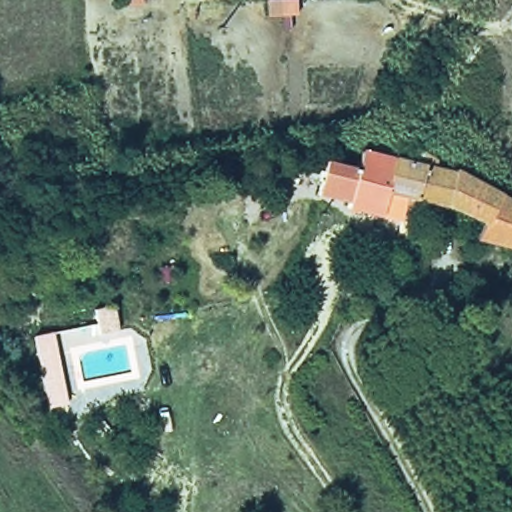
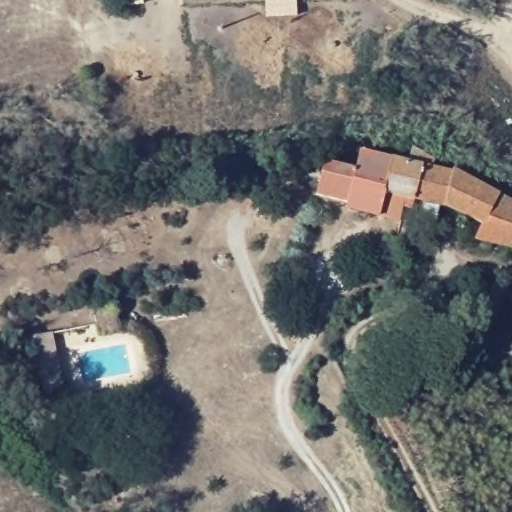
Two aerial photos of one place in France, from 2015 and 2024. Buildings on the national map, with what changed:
unchanged [(357,152),(406,162),(411,149),(427,156),(425,162),(425,165),(455,172),(512,204),(512,250),(473,240),(478,227),(438,206),(415,201),(381,193),(375,217),(344,208),(356,156),(357,152)]
unchanged [(319,201),(330,159),(356,156),(344,208),(319,201)]
unchanged [(93,310),(123,304),(129,326),(100,332),(93,310)]

